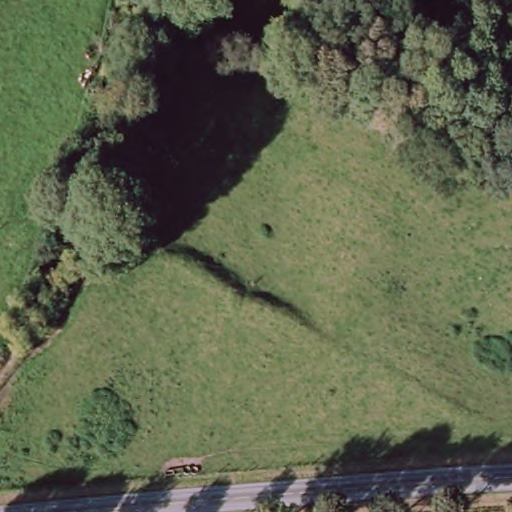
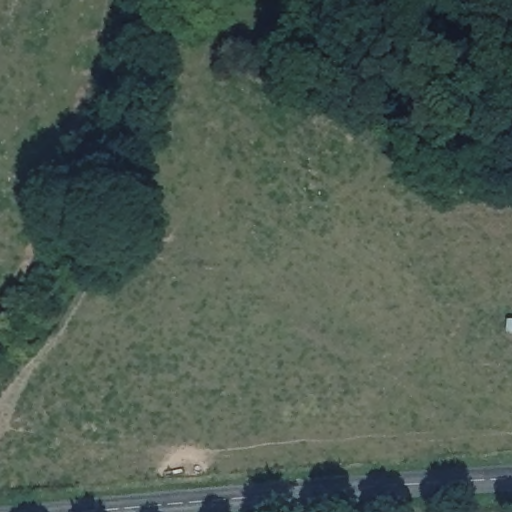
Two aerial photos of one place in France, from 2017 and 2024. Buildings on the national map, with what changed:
unchanged [(27,287),(44,298),(25,323),(8,310),(27,287)]

